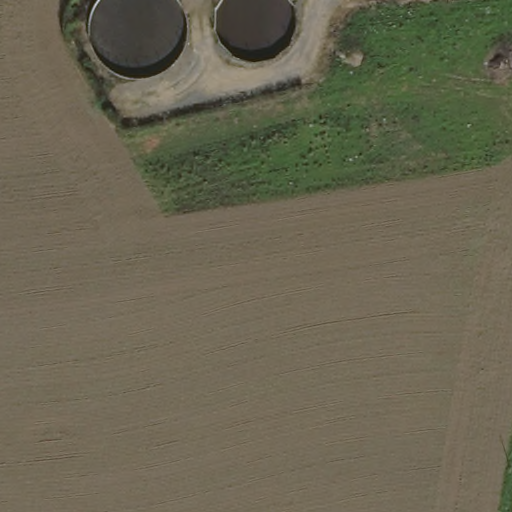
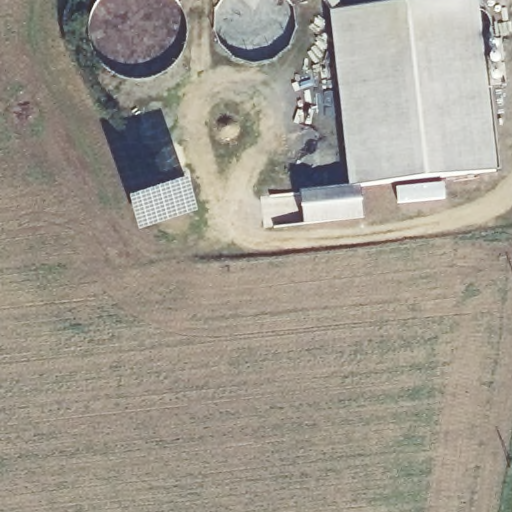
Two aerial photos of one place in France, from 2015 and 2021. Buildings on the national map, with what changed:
new [(349,188),(330,12),(407,4),(407,0),(443,0),(443,2),(462,0),(478,0),(496,171),(360,186),(363,219),(302,226),(302,194),(349,188)]

